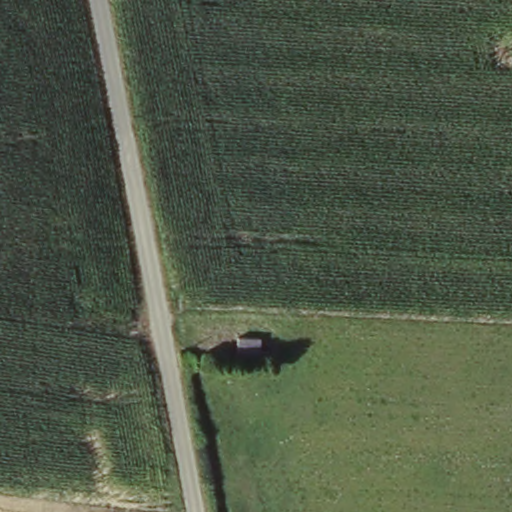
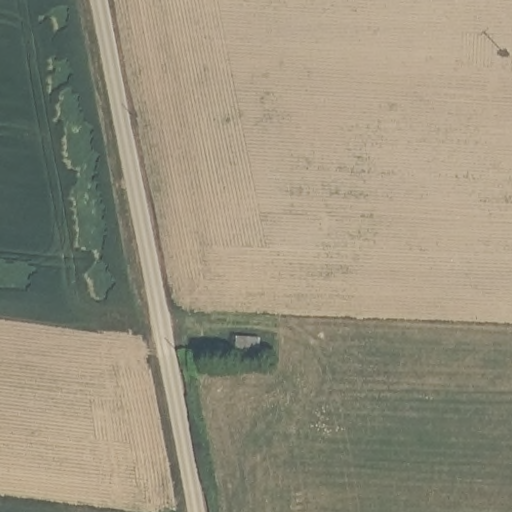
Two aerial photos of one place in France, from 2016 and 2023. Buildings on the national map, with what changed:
unchanged [(266,361),(244,361),(245,338),(267,338),(266,361)]

